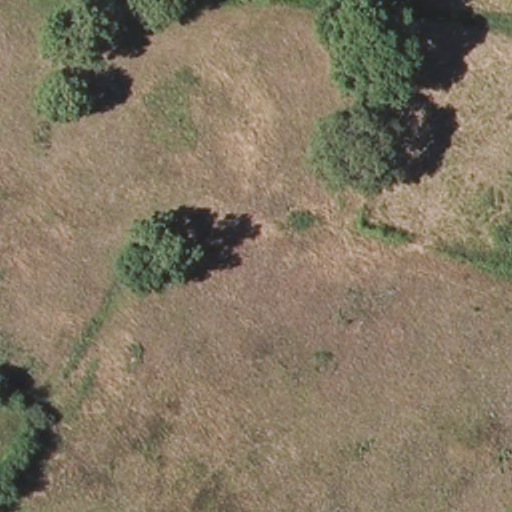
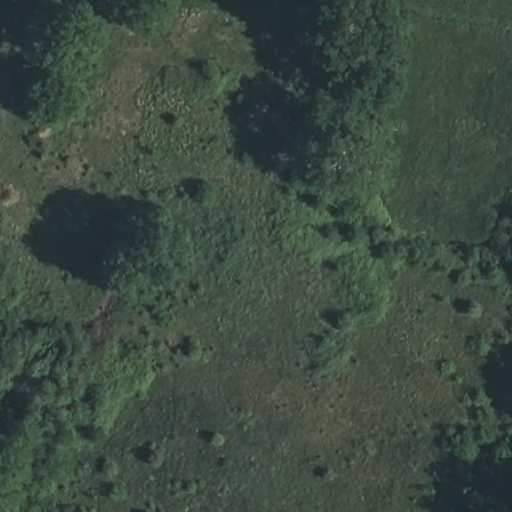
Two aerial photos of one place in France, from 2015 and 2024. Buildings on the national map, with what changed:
[]

